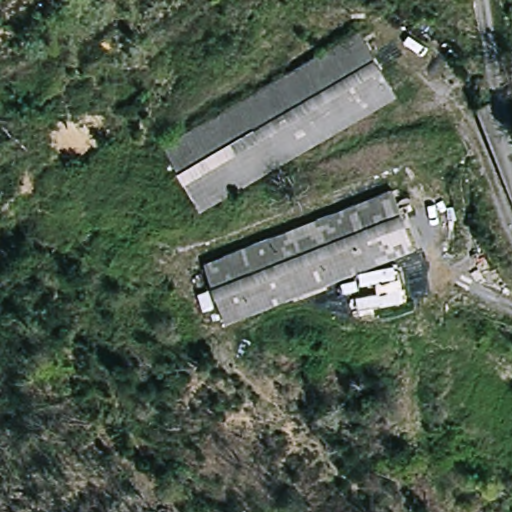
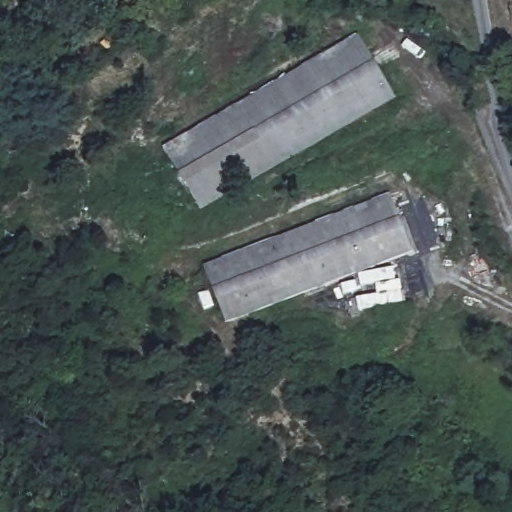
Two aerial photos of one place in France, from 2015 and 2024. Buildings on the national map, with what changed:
unchanged [(395,99),(210,210),(169,147),(365,30),(397,79),(395,99)]
unchanged [(394,189),(415,249),(228,323),(205,262),(394,189)]

